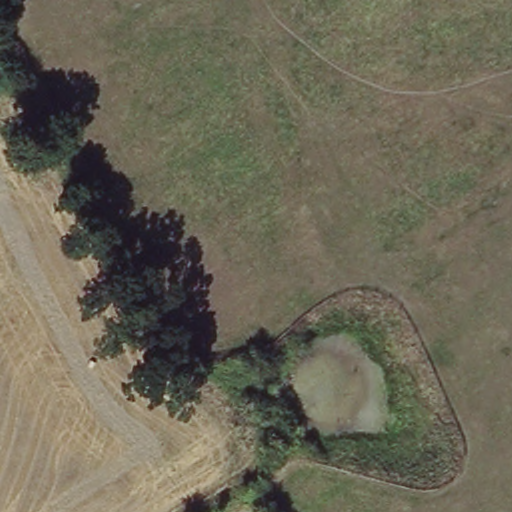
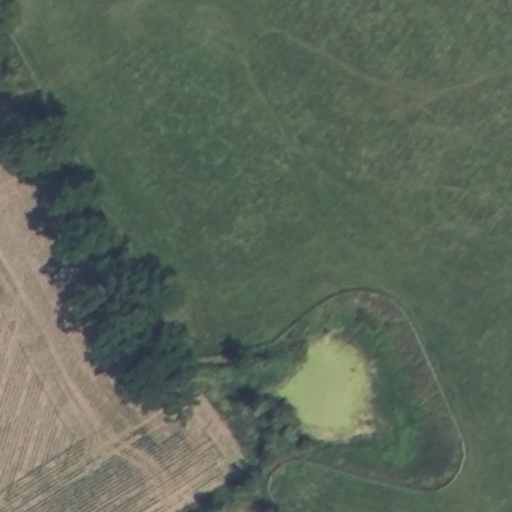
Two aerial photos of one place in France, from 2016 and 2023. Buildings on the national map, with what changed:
[]

